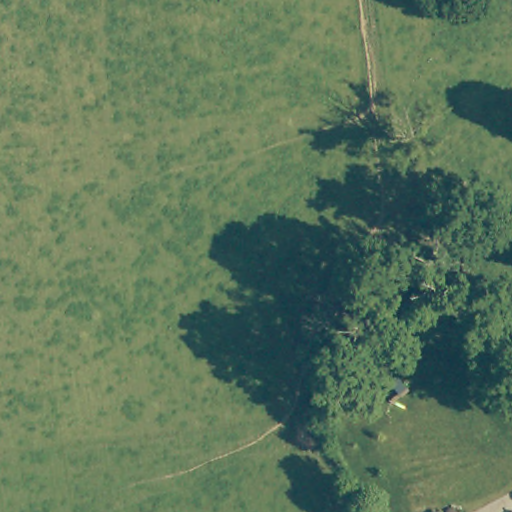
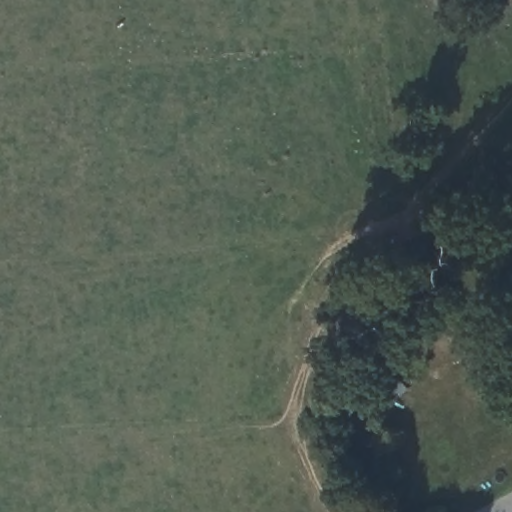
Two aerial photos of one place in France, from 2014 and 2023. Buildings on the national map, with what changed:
[]

